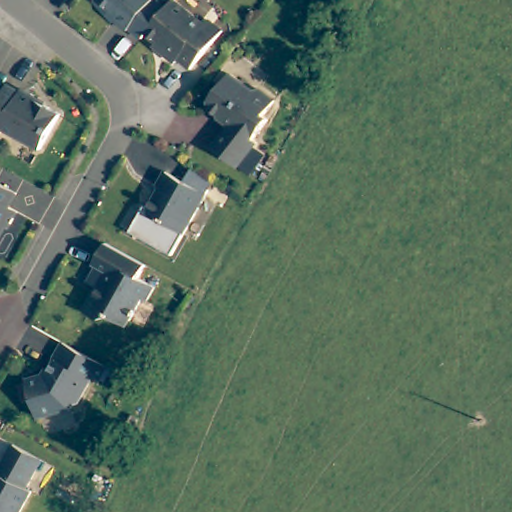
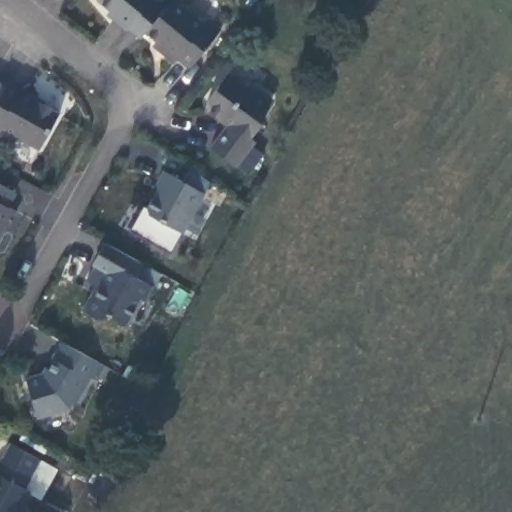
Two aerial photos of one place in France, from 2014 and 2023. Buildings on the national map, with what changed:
unchanged [(124,26),(122,28),(111,18),(115,14),(97,0),(151,0),(161,8),(142,31),(137,37),(124,26)]
unchanged [(196,21),(201,15),(217,29),(184,66),(174,57),(171,61),(152,45),(155,41),(142,31),(161,8),(167,0),(171,0),(196,21)]
unchanged [(328,0),(345,0),(357,5),(333,47),(311,35),(328,0)]
unchanged [(251,91),(255,87),(272,99),(260,116),(263,119),(249,138),(252,140),(232,165),(204,143),(221,120),(199,104),(226,72),(251,91)]
unchanged [(17,88),(18,86),(33,94),(32,96),(57,109),(39,145),(0,126),(0,86),(2,81),(17,88)]
unchanged [(173,242),(131,219),(145,193),(150,196),(159,178),(157,173),(165,159),(206,181),(173,242)]
unchanged [(9,189),(2,203),(9,208),(2,224),(0,223),(0,184),(9,189)]
unchanged [(137,263),(130,277),(145,285),(138,296),(134,294),(118,322),(100,312),(90,315),(75,306),(86,282),(80,279),(95,240),(137,263)]
unchanged [(99,361),(91,375),(85,372),(69,401),(67,401),(66,405),(35,414),(24,377),(46,371),(52,356),(50,356),(57,339),(99,361)]
unchanged [(22,482),(28,484),(17,512),(0,512),(0,452),(6,439),(35,451),(22,482)]

